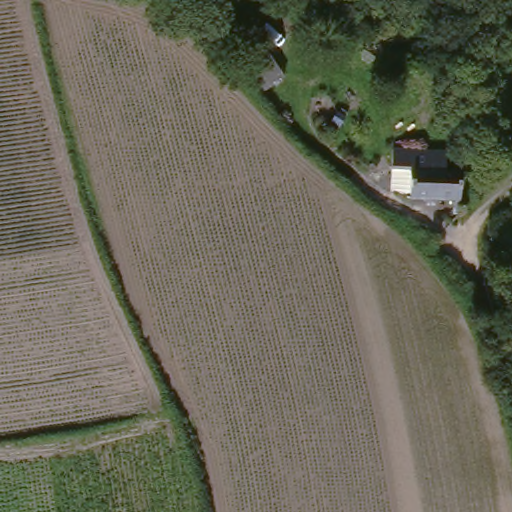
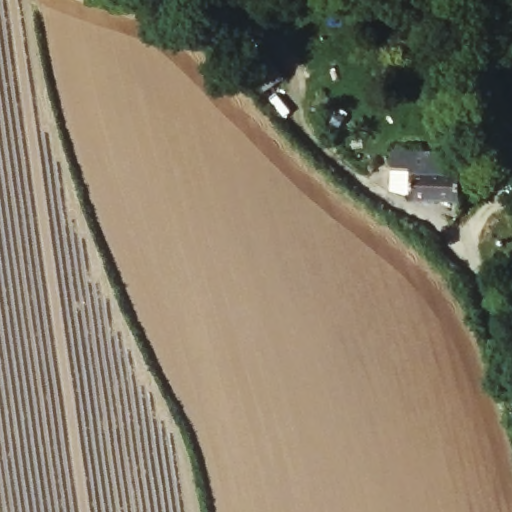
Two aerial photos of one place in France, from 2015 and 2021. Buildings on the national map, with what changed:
unchanged [(236,64),(249,57),(261,49),(276,76),(266,82),(255,89),(236,64)]
unchanged [(381,193),(381,172),(381,152),(433,152),(432,173),(450,173),(450,200),(399,199),(390,199),(381,193)]

